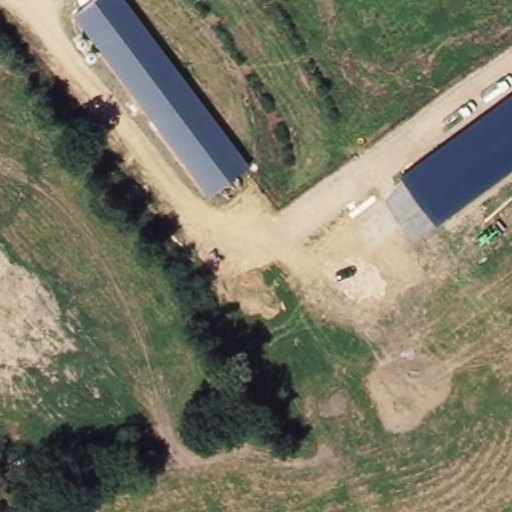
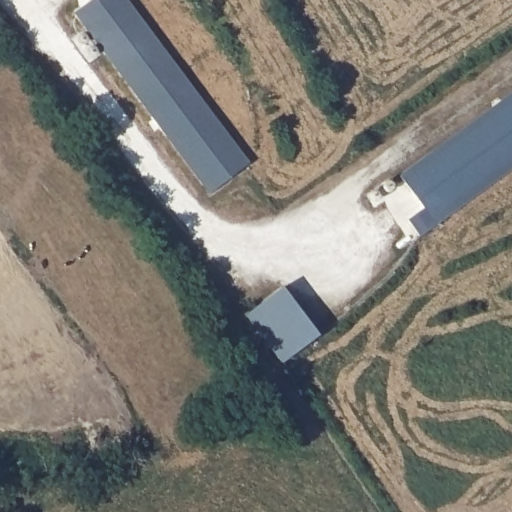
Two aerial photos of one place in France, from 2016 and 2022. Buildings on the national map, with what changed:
unchanged [(212,193),(78,11),(93,0),(131,0),(254,164),(212,193)]
unchanged [(437,226),(399,174),(512,92),(512,170),(437,226)]
new [(245,316),(283,285),(320,334),(282,363),(245,316)]

